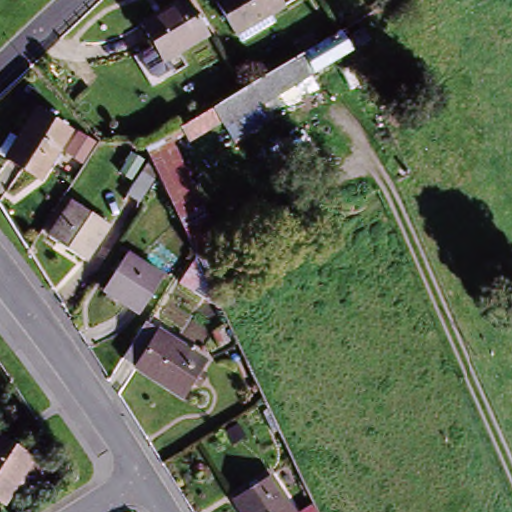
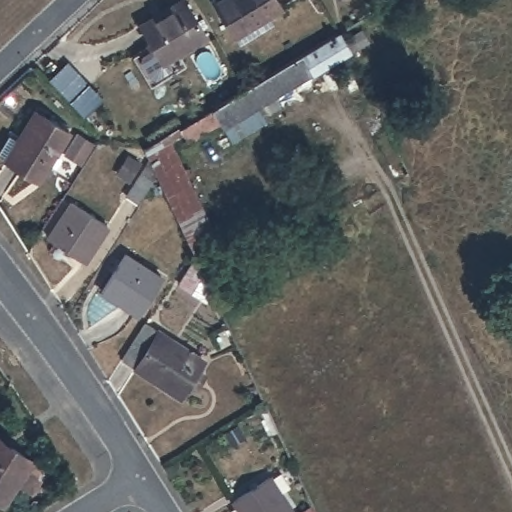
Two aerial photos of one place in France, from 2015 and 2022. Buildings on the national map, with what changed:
unchanged [(195,0),(216,36),(172,63),(150,26),(192,0),(195,0)]
unchanged [(291,0),(244,36),(219,2),(221,0),(291,0)]
unchanged [(193,247),(172,198),(163,180),(149,157),(185,134),(189,131),(252,93),(260,88),(269,82),(337,41),(342,38),(348,46),(367,36),(372,48),(275,105),(282,118),(270,124),(263,114),(227,136),(222,131),(194,150),(188,140),(174,148),(213,237),(205,240),(213,257),(202,263),(197,256),(193,247)]
unchanged [(40,116),(72,135),(45,180),(14,161),(40,116)]
unchanged [(139,207),(127,198),(143,175),(155,183),(139,207)]
unchanged [(110,228),(87,263),(57,242),(80,207),(110,228)]
unchanged [(140,313),(105,289),(129,254),(164,278),(140,313)]
unchanged [(152,326),(209,363),(185,398),(129,360),(152,326)]
unchanged [(18,483),(2,508),(0,507),(0,441),(45,472),(30,492),(18,483)]
unchanged [(232,492),(267,472),(291,512),(243,512),(232,492)]

